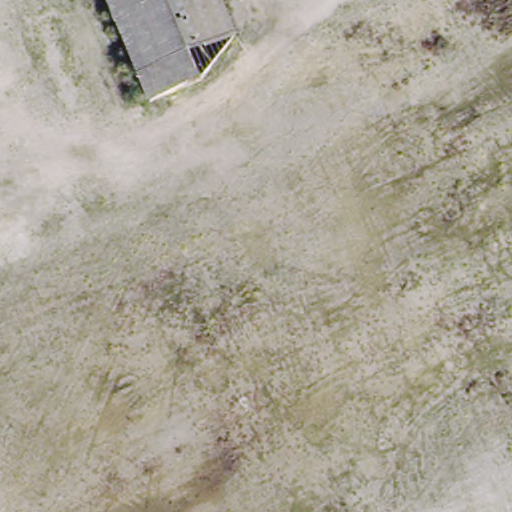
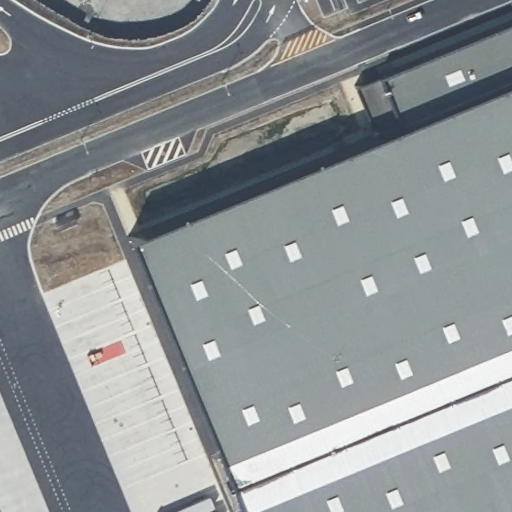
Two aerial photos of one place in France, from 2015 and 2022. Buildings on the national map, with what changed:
demolished [(214,0),(229,35),(197,81),(182,87),(159,97),(147,102),(104,0),(214,0)]
new [(64,262),(512,86),(512,512),(170,512),(64,262)]
new [(0,472),(17,512),(0,512),(0,472)]

